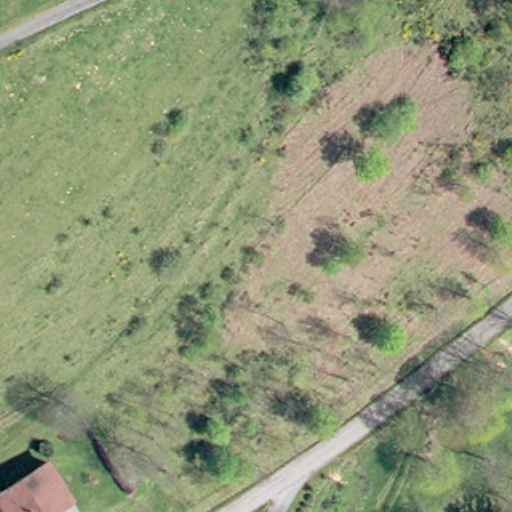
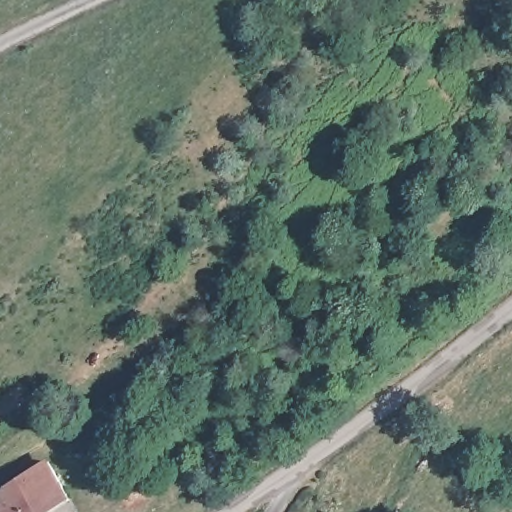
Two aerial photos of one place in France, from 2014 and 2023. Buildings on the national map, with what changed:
unchanged [(5,512),(4,511),(16,502),(4,485),(44,455),(68,488),(36,512),(5,512)]

